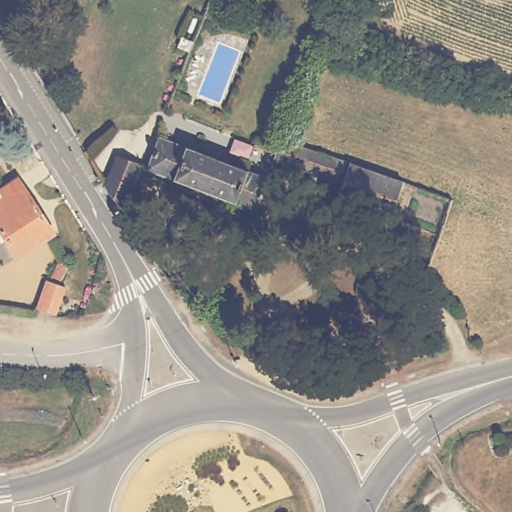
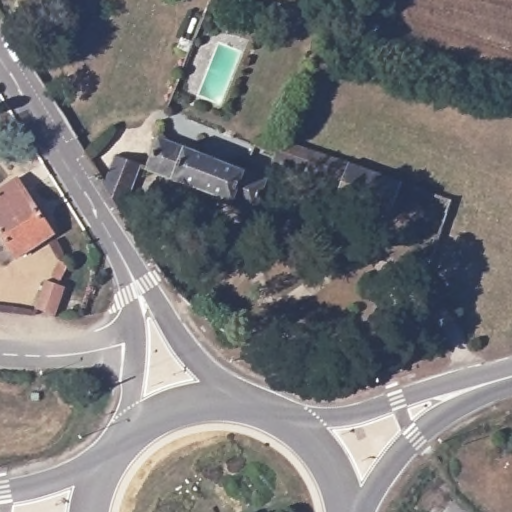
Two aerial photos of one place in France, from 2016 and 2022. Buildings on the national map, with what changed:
unchanged [(255,209),(145,166),(119,209),(101,181),(115,154),(138,164),(141,157),(149,160),(158,135),(267,177),(255,209)]
unchanged [(388,215),(335,196),(341,181),(276,157),(283,137),(320,150),(402,180),(388,215)]
unchanged [(19,255),(0,223),(0,190),(22,177),(57,232),(19,255)]
unchanged [(405,276),(409,263),(420,267),(415,280),(405,276)]
unchanged [(58,304),(39,297),(49,269),(69,275),(58,304)]

